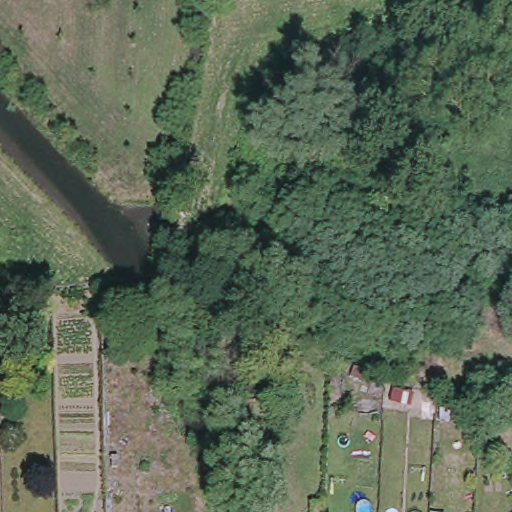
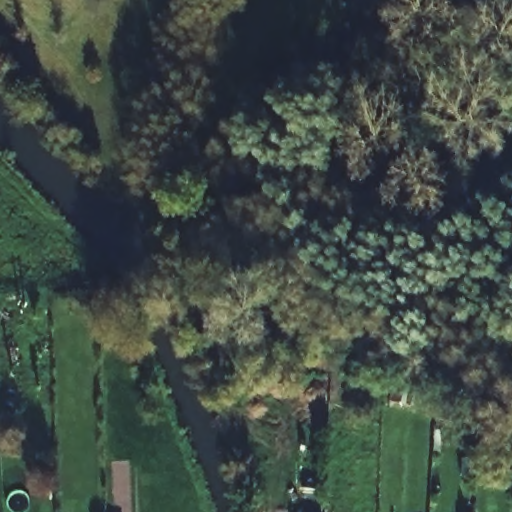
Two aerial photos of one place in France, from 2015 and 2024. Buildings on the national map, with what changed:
[]

